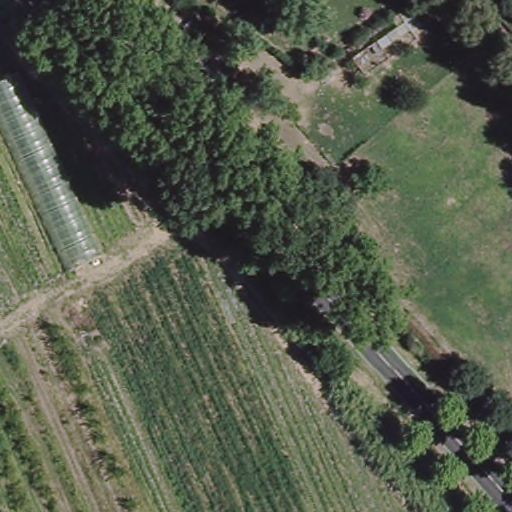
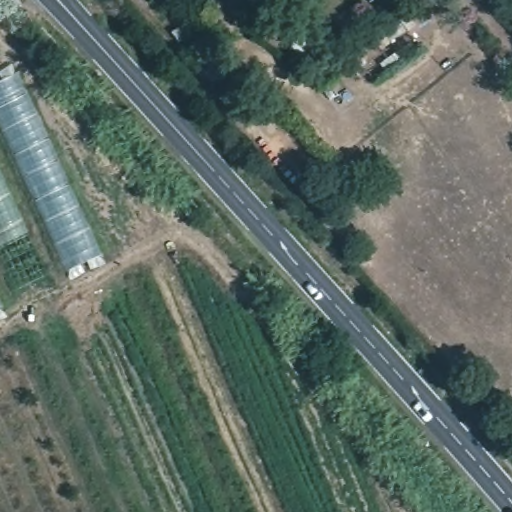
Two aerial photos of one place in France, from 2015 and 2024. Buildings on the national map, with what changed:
unchanged [(22,70),(102,255),(67,272),(0,120),(0,80),(22,70)]
new [(32,232),(0,248),(0,162),(32,232)]
new [(0,311),(0,297),(5,308),(0,311)]

